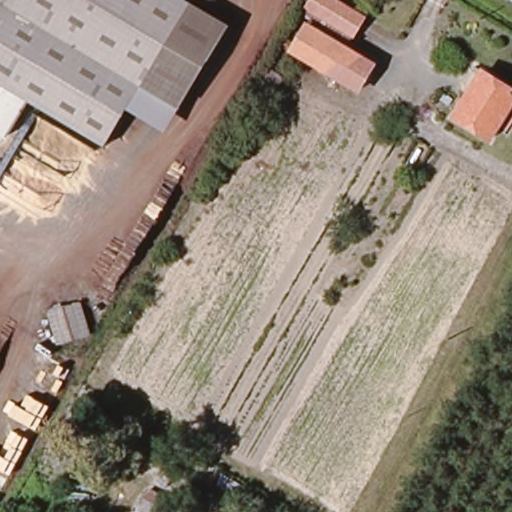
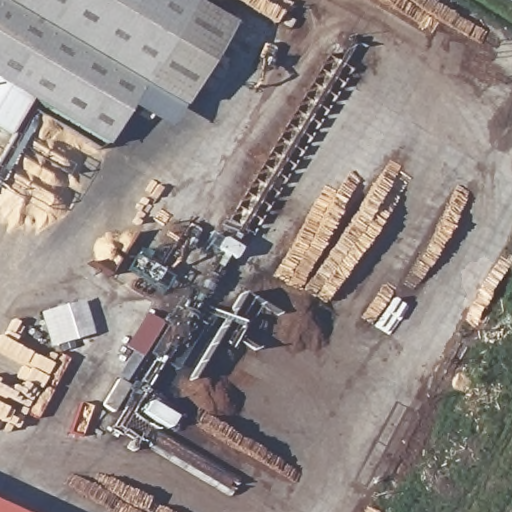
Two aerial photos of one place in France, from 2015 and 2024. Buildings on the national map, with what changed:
unchanged [(185,106),(147,85),(111,146),(34,100),(0,159),(0,0),(192,0),(234,24),(185,106)]
demolished [(357,43),(394,67),(369,100),(286,53),(315,0),(349,0),(374,13),(357,43)]
demolished [(486,71),(512,85),(512,116),(497,138),(456,114),(486,71)]
unchanged [(97,333),(62,345),(51,309),(88,299),(97,333)]
new [(5,512),(0,512),(0,510),(5,512)]

